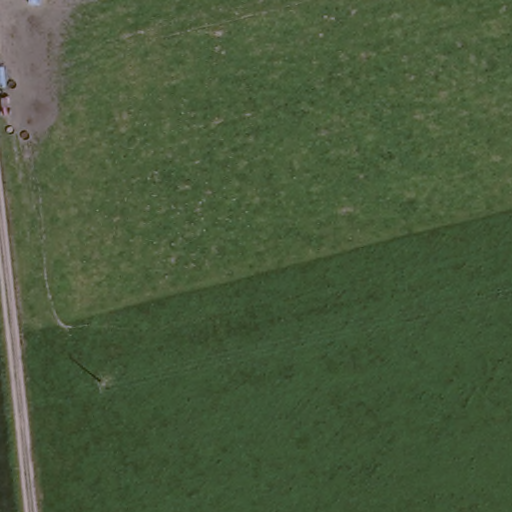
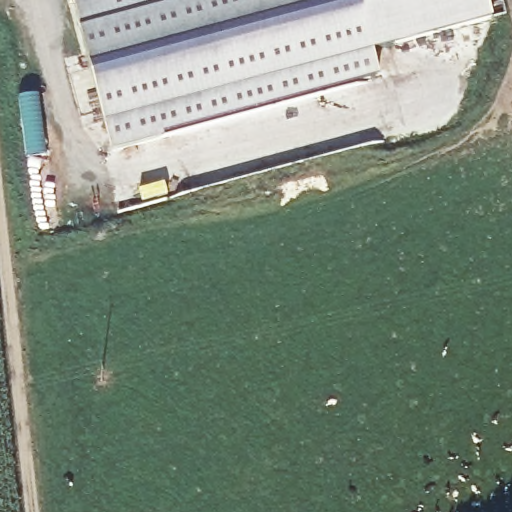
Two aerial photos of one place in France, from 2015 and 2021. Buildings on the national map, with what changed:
new [(494,19),(375,53),(381,77),(166,135),(166,139),(111,154),(74,0),(488,0),(494,19)]

